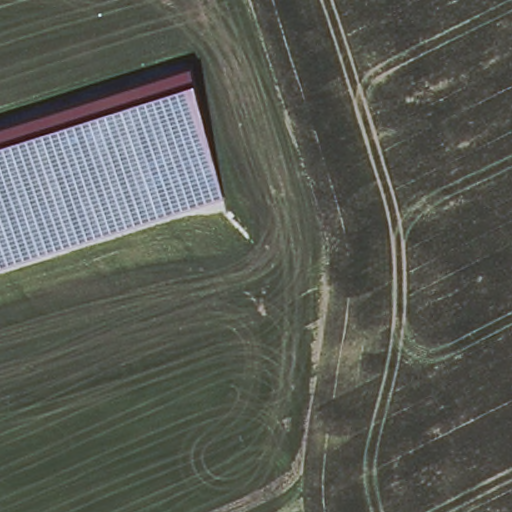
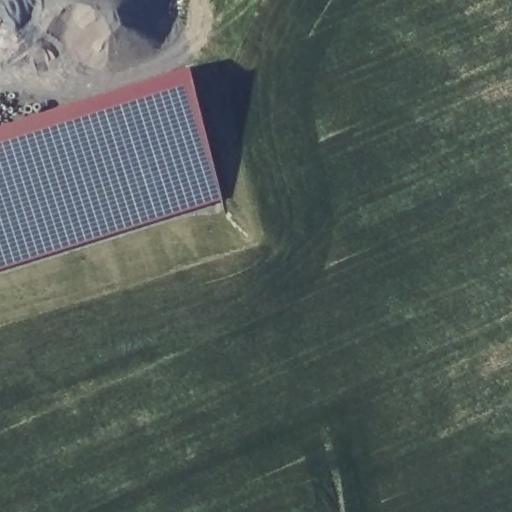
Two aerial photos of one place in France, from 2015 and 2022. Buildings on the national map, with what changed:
unchanged [(192,81),(222,198),(0,268),(0,126),(187,68),(192,81)]

